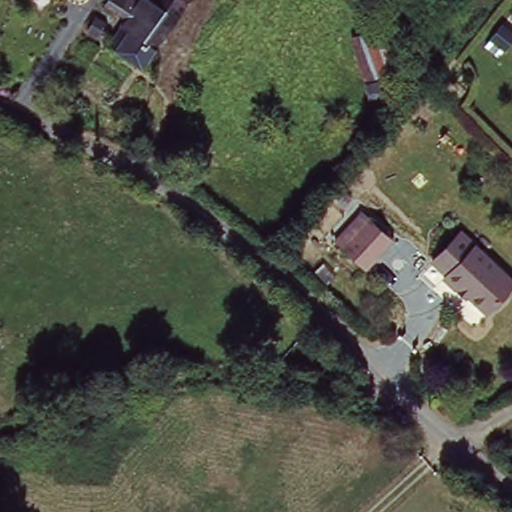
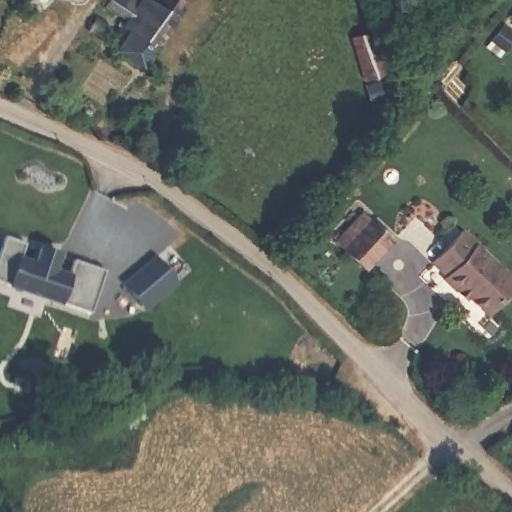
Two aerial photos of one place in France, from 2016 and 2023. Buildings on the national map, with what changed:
unchanged [(160,55),(146,73),(115,54),(140,18),(122,8),(128,0),(152,0),(189,0),(194,3),(160,55)]
unchanged [(189,0),(195,0),(194,3),(189,0)]
unchanged [(403,74),(401,76),(372,81),(355,24),(385,15),(403,74)]
unchanged [(367,270),(333,240),(361,210),(394,240),(367,270)]
unchanged [(512,270),(512,289),(495,307),(468,283),(461,290),(447,277),(453,268),(439,256),(465,228),(512,270)]
new [(26,244),(20,258),(35,264),(41,248),(63,258),(59,270),(68,275),(75,260),(105,272),(91,315),(0,284),(0,253),(6,238),(26,244)]
new [(158,260),(177,285),(146,309),(126,284),(158,260)]

